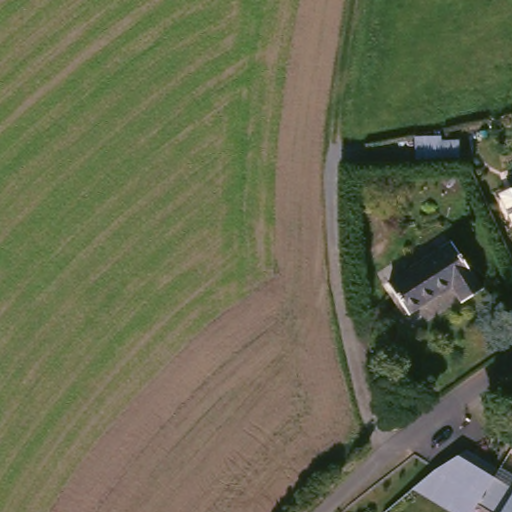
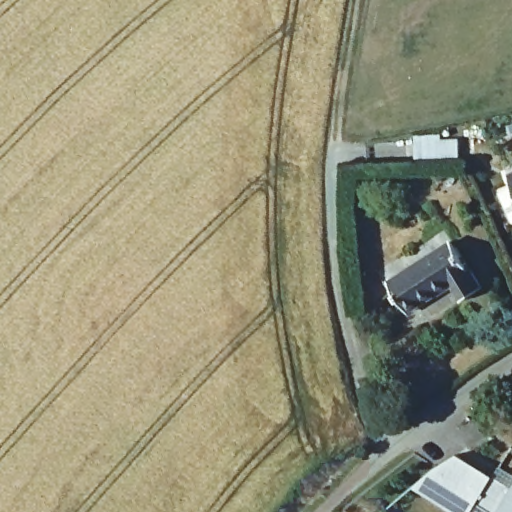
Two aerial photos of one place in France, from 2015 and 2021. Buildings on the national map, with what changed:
unchanged [(449,131),(450,136),(467,136),(468,152),(425,153),(424,132),(449,131)]
unchanged [(463,239),(495,286),(475,299),(465,282),(418,312),(400,280),(463,239)]
unchanged [(500,512),(480,502),(474,512),(450,512),(412,489),(435,470),(458,455),(496,476),(512,487),(512,512),(500,512)]

